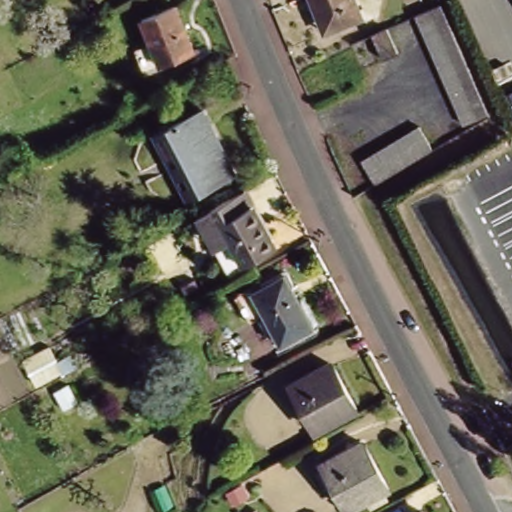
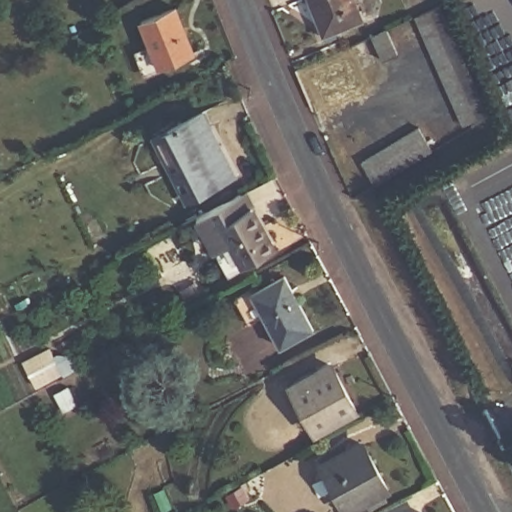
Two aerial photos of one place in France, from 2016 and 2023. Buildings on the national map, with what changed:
unchanged [(336,30),(332,20),(320,25),(310,0),(353,0),(361,20),(336,30)]
unchanged [(142,19),(175,5),(193,50),(160,63),(142,19)]
unchanged [(492,115),(469,126),(418,20),(442,9),(492,115)]
unchanged [(401,60),(389,66),(376,43),(390,37),(401,60)]
unchanged [(165,131),(200,112),(233,174),(198,192),(165,131)]
unchanged [(374,182),(360,159),(417,124),(431,147),(374,182)]
unchanged [(278,245),(235,270),(203,213),(247,190),(278,245)]
unchanged [(266,312),(251,320),(240,297),(285,273),(313,325),(282,342),(266,312)]
unchanged [(286,383),(326,362),(350,405),(310,426),(286,383)]
unchanged [(326,465),(366,442),(391,487),(350,510),(326,465)]
unchanged [(421,512),(411,512),(419,507),(421,512)]

